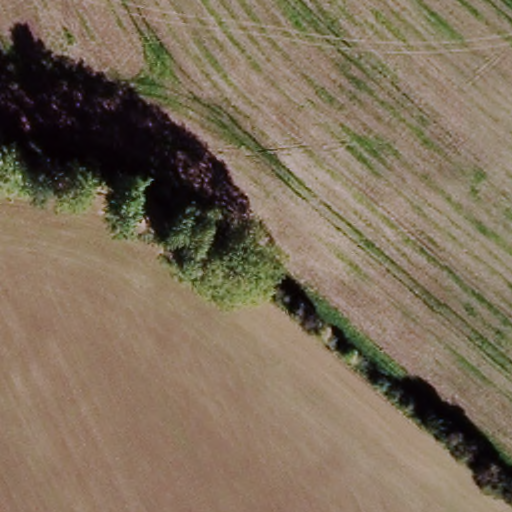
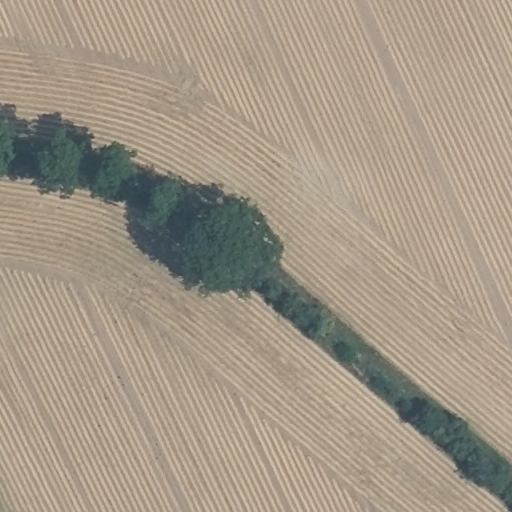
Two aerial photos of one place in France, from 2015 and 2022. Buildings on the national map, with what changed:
[]

